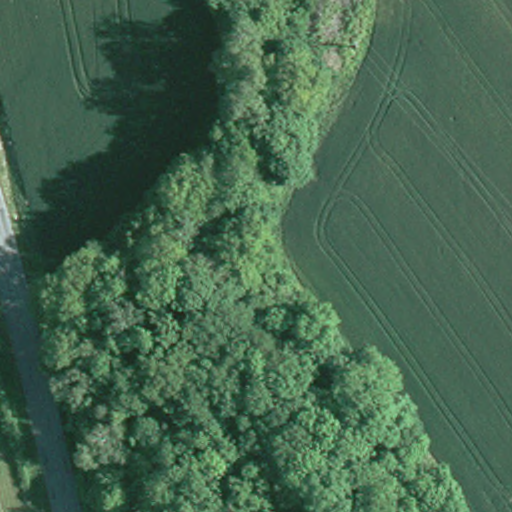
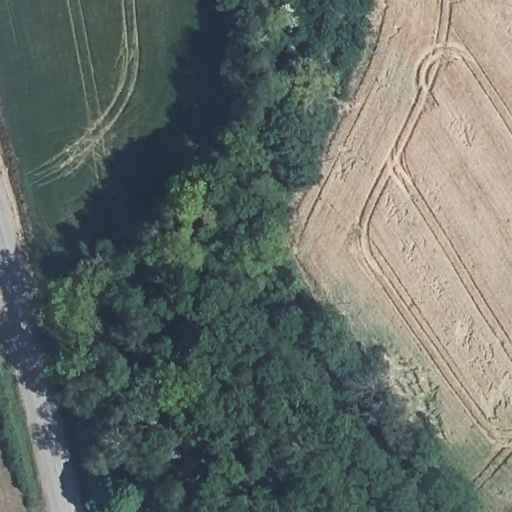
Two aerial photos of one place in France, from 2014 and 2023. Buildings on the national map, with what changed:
unchanged [(161,427),(133,413),(142,397),(146,398),(150,391),(173,402),(161,427)]

